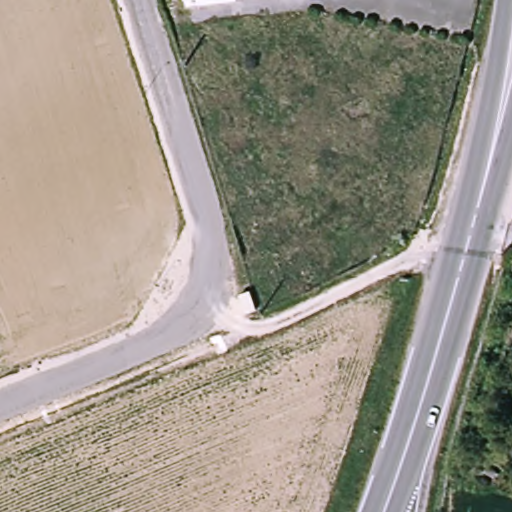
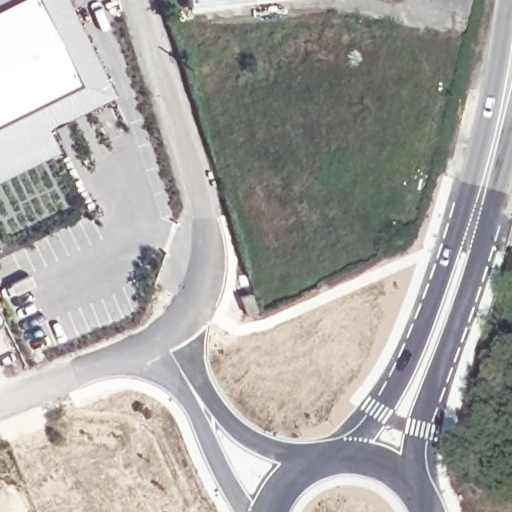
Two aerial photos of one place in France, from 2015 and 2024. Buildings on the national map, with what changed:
new [(115,96),(48,129),(59,151),(0,180),(0,0),(68,0),(115,96)]
unchanged [(190,12),(188,0),(265,0),(190,12)]
new [(0,314),(0,312),(1,314),(0,314)]

